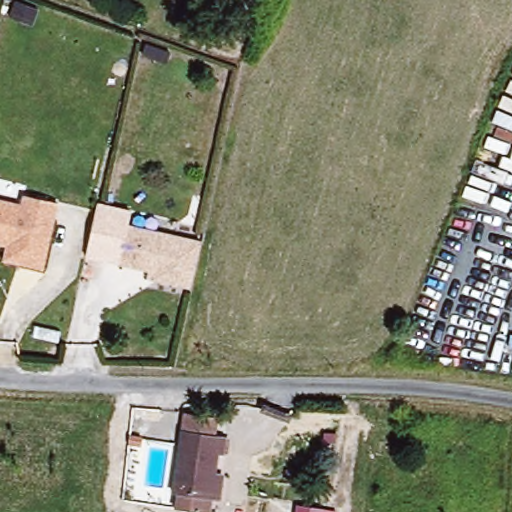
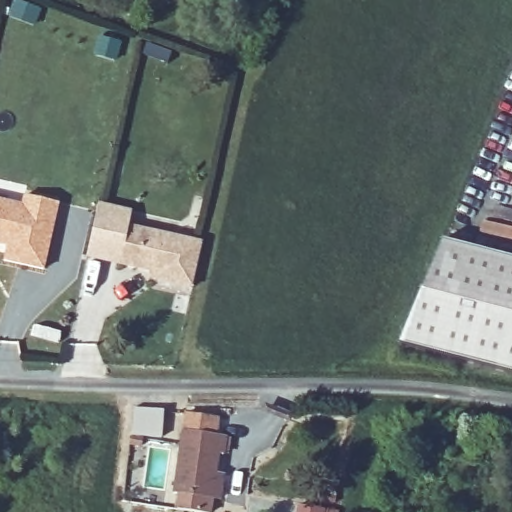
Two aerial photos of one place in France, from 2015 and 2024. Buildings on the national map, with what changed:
unchanged [(39,268),(2,263),(6,241),(0,241),(0,203),(17,206),(20,196),(52,202),(39,268)]
unchanged [(150,267),(122,262),(129,229),(200,242),(191,287),(162,283),(147,280),(150,267)]
new [(431,242),(512,261),(512,376),(390,347),(431,242)]
new [(134,408),(164,408),(160,440),(130,436),(134,408)]
unchanged [(219,496),(217,512),(211,512),(184,510),(184,493),(176,492),(182,429),(184,429),(186,412),(216,415),(214,432),(231,435),(229,451),(223,450),(221,470),(231,472),(228,497),(219,496)]

